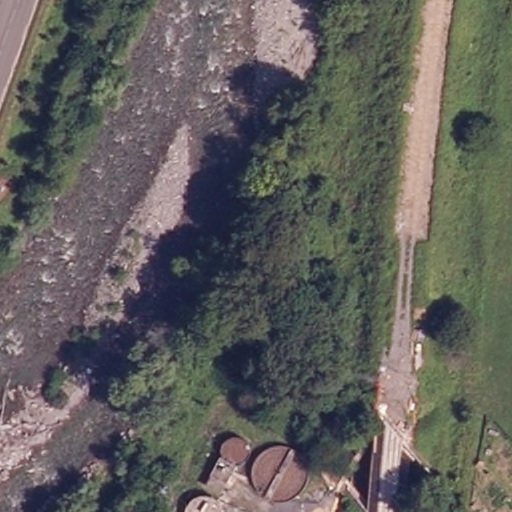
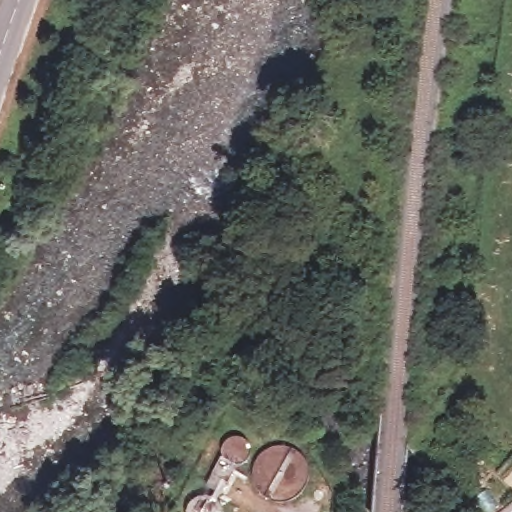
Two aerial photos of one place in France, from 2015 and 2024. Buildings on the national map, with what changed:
unchanged [(237,427),(241,429),(245,431),(249,436),(251,443),(250,450),(247,456),(242,460),(236,461),(228,460),(225,458),(221,454),(218,447),(217,441),(220,435),(224,431),(229,428),(234,427),(237,427)]
unchanged [(203,490),(213,490),(219,492),(225,498),(228,506),(227,512),(189,512),(188,510),(189,502),(192,498),(197,494),(203,490)]

